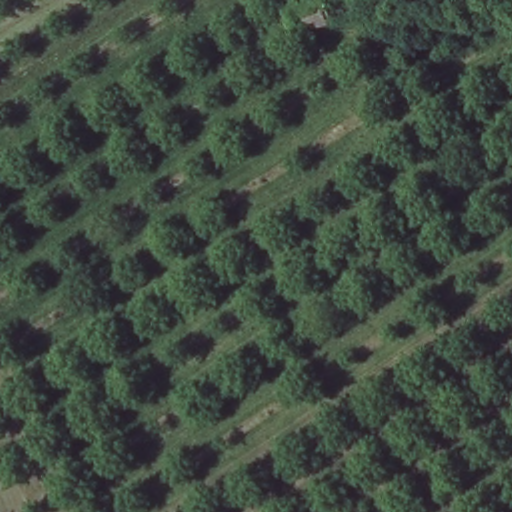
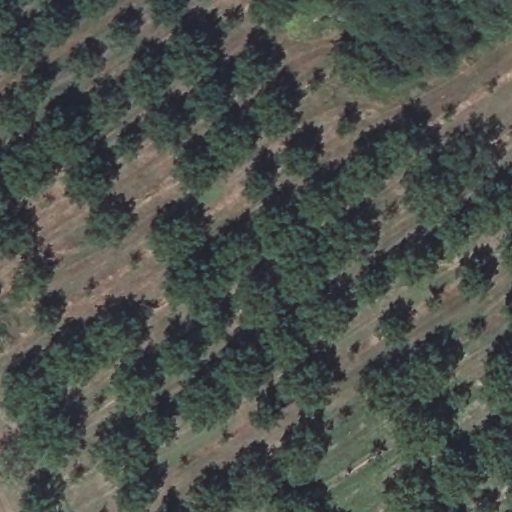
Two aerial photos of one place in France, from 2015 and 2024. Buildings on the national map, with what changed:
unchanged [(286,2),(294,0),(355,0),(358,10),(293,29),(286,2)]

